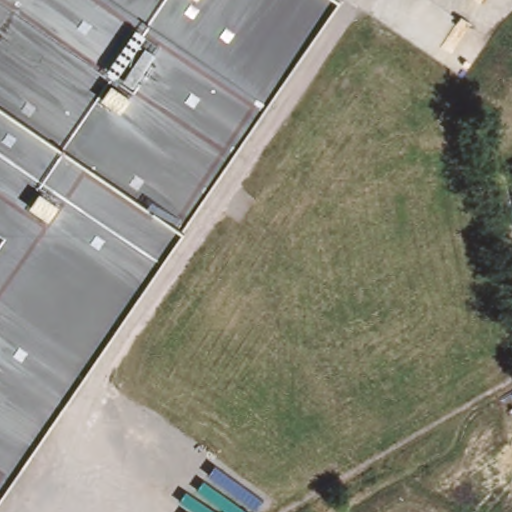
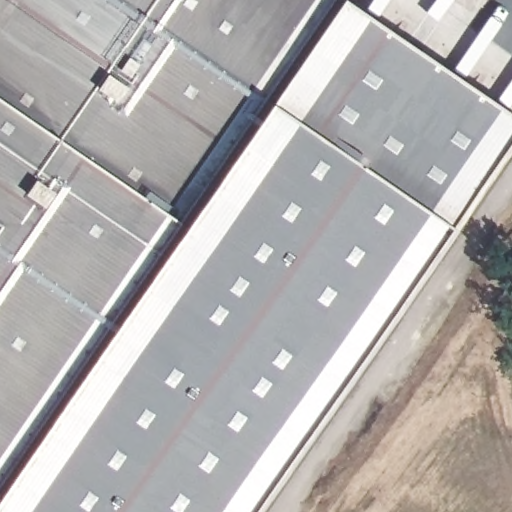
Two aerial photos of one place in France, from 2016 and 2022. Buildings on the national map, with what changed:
unchanged [(179,220),(0,480),(0,0),(330,0),(179,220)]
new [(330,0),(345,0),(512,116),(512,143),(453,227),(257,512),(0,512),(0,480),(179,220),(330,0)]

